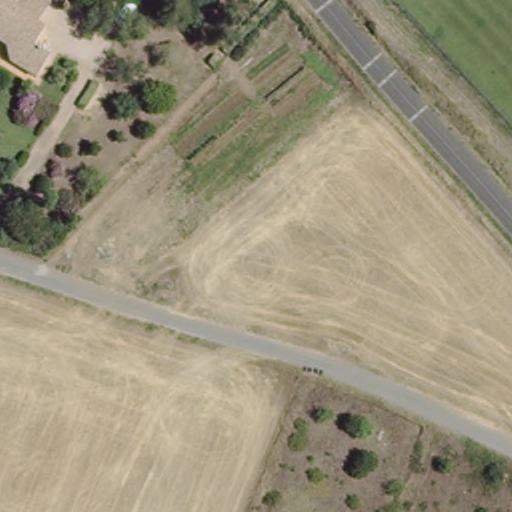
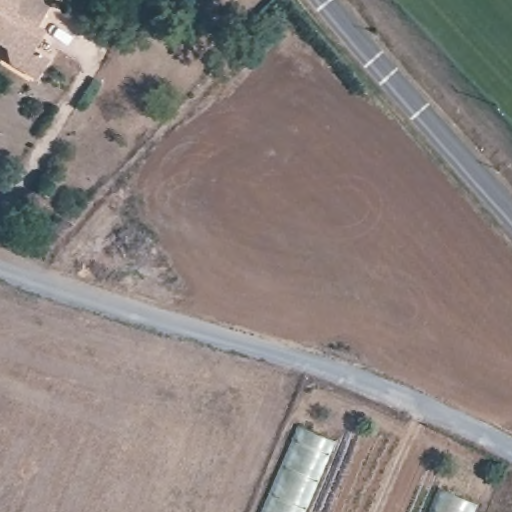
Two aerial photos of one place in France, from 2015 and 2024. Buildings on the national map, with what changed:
unchanged [(35,27),(48,36),(38,53),(50,62),(36,82),(0,60),(0,0),(45,0),(50,3),(35,27)]
new [(296,424),(333,438),(302,512),(260,512),(296,424)]
new [(439,496),(443,498),(444,494),(464,506),(467,500),(475,504),(474,507),(476,508),(474,510),(474,512),(431,512),(439,496)]

